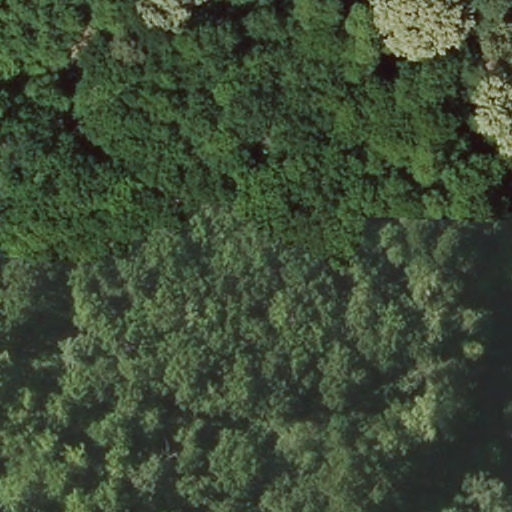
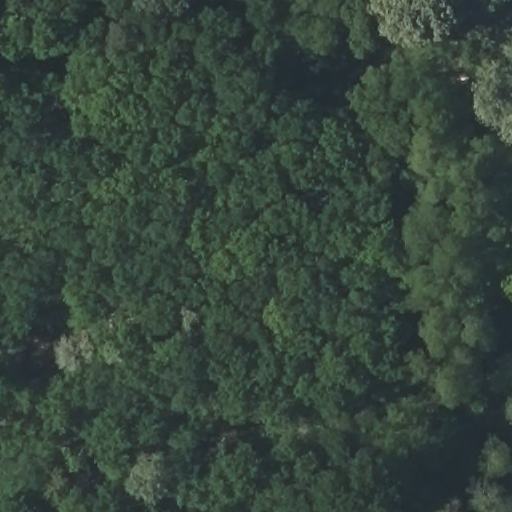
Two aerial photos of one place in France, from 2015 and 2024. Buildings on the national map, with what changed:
unchanged [(175,185),(211,175),(216,192),(181,202),(175,185)]

